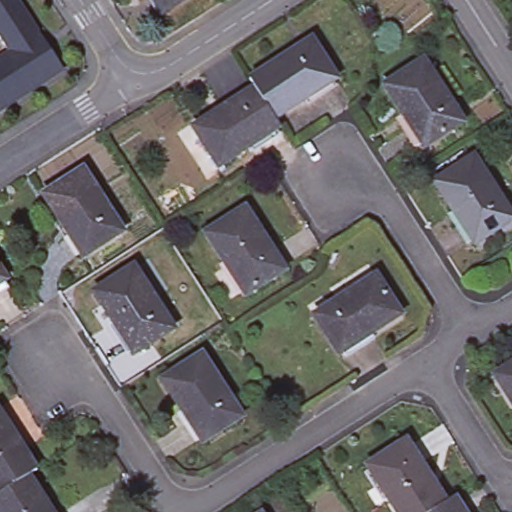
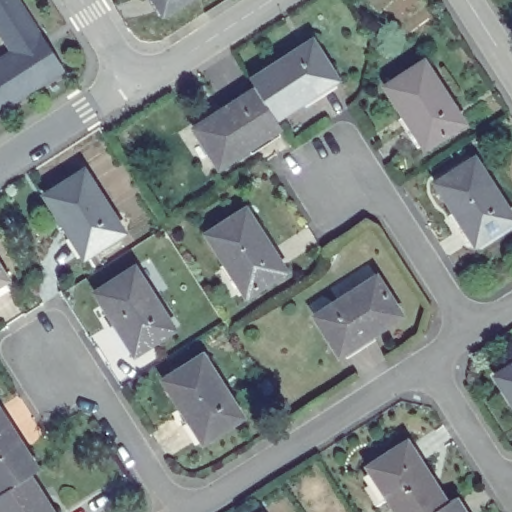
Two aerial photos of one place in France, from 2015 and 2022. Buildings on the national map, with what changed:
unchanged [(64,68),(0,109),(0,0),(20,0),(64,68)]
unchanged [(166,7),(161,0),(177,0),(170,5),(166,7)]
unchanged [(257,89),(251,78),(315,40),(338,79),(276,118),(257,89)]
unchanged [(430,54),(469,115),(430,139),(392,78),(430,54)]
unchanged [(222,167),(196,128),(257,89),(276,118),(282,127),(222,167)]
unchanged [(512,216),(512,217),(474,240),(436,179),(475,155),(512,216)]
unchanged [(85,163),(125,226),(85,250),(46,187),(85,163)]
unchanged [(247,207),(285,266),(246,291),(209,231),(247,207)]
unchanged [(0,285),(0,263),(7,273),(3,275),(7,281),(0,285)]
unchanged [(139,266),(177,328),(137,353),(99,290),(139,266)]
unchanged [(380,274),(403,314),(342,353),(318,315),(380,274)]
unchanged [(241,415),(201,439),(164,378),(204,354),(241,415)]
unchanged [(512,390),(499,369),(512,361),(512,390)]
unchanged [(38,469),(30,474),(0,492),(0,408),(38,469)]
unchanged [(410,441),(447,501),(432,512),(401,512),(372,464),(410,441)]
unchanged [(30,474),(54,512),(0,512),(0,492),(30,474)]
unchanged [(457,495),(468,512),(432,512),(447,501),(457,495)]
unchanged [(267,512),(261,512),(265,509),(267,512)]

